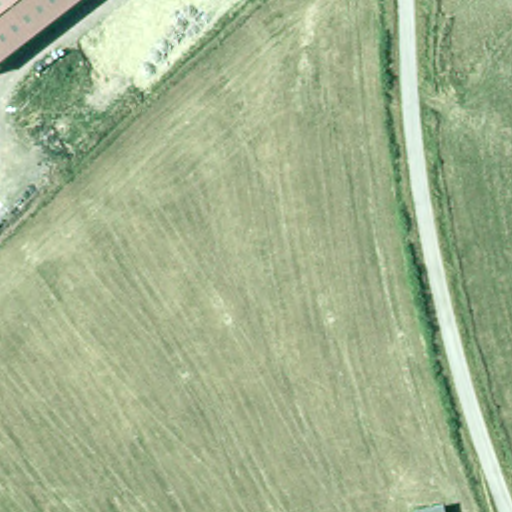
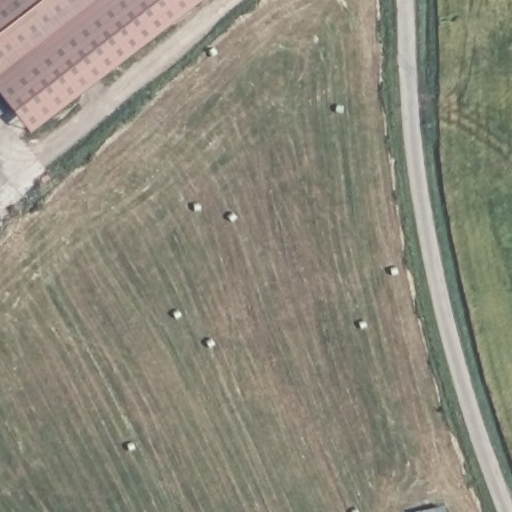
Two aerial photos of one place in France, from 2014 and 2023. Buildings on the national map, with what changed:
unchanged [(91,0),(0,71),(0,0),(91,0)]
new [(92,0),(201,0),(29,131),(0,92),(0,71),(92,0)]

